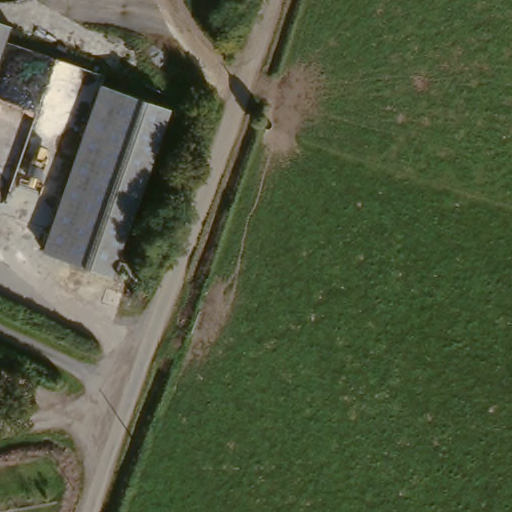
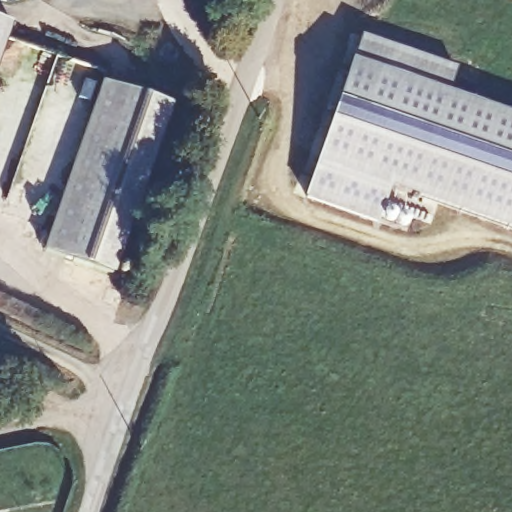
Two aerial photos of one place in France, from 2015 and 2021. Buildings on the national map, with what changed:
unchanged [(14,34),(10,46),(56,65),(40,114),(0,99),(0,28),(14,34)]
new [(448,94),(512,116),(512,230),(391,189),(385,207),(414,216),(409,231),(381,220),(380,223),(306,198),(352,61),(361,36),(457,67),(448,94)]
unchanged [(44,250),(102,83),(171,107),(113,273),(44,250)]

